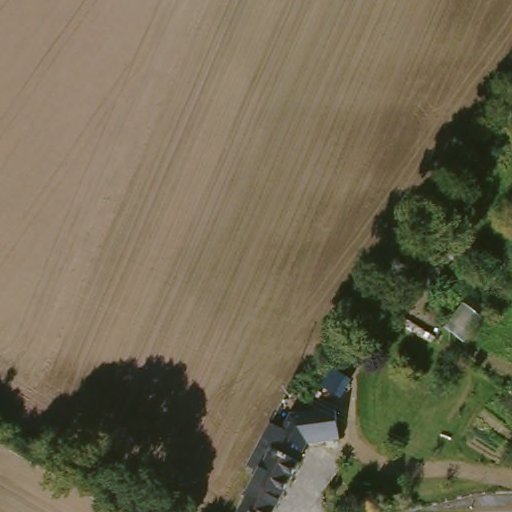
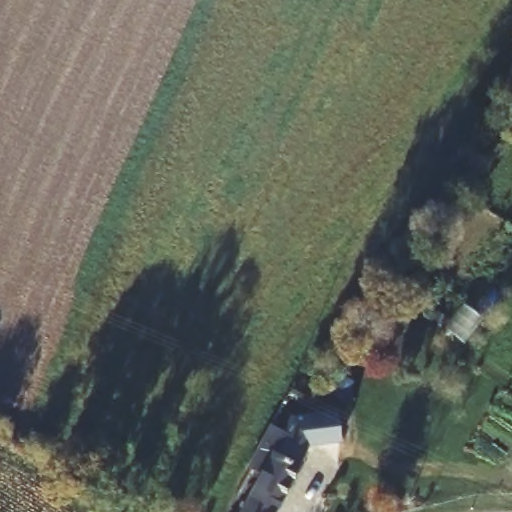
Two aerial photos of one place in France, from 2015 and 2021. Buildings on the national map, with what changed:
unchanged [(342,442),(308,447),(291,468),(273,512),(235,512),(260,462),(291,413),(337,407),(342,442)]

